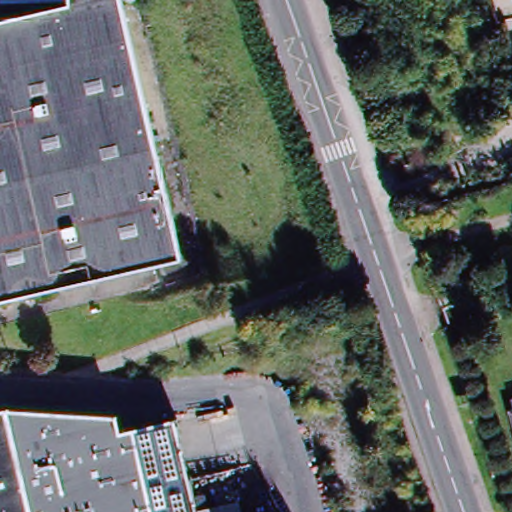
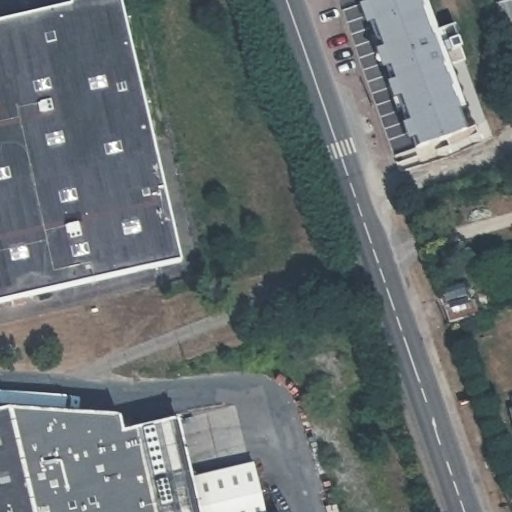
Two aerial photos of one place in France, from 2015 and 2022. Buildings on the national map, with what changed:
unchanged [(159,174),(179,260),(8,298),(4,299),(0,300),(0,17),(65,2),(65,0),(119,0),(159,171),(159,174)]
unchanged [(132,3),(131,3),(130,4),(128,4),(126,3),(125,2),(124,1),(122,0),(135,0),(134,1),(132,3)]
new [(406,143),(401,125),(410,123),(400,98),(392,101),(385,84),(395,81),(388,66),(381,70),(374,51),(381,48),(371,20),(365,23),(358,5),(371,0),(424,0),(436,32),(451,26),(456,39),(460,49),(463,60),(448,64),(471,129),(463,131),(417,147),(413,138),(406,143)]
unchanged [(458,293),(466,319),(438,327),(430,300),(458,293)]
unchanged [(110,416),(114,432),(170,417),(193,508),(194,512),(0,512),(0,409),(110,416)]
unchanged [(262,512),(194,512),(193,508),(187,475),(250,461),(262,512)]

